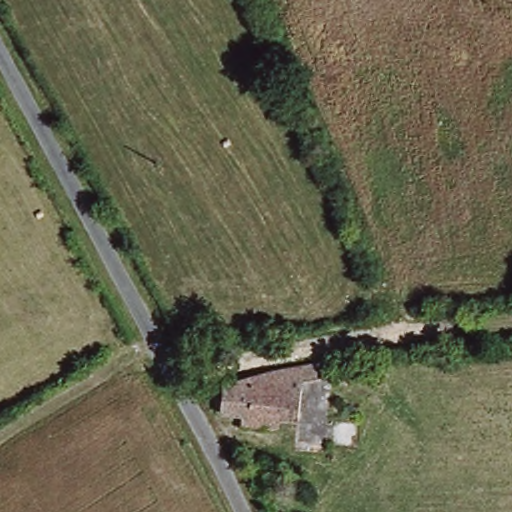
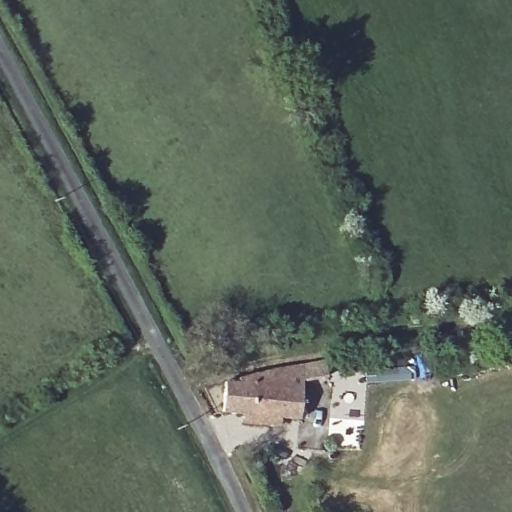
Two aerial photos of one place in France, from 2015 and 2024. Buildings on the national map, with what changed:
unchanged [(240,437),(241,428),(220,425),(222,393),(325,379),(328,395),(303,398),(297,436),(277,433),(276,442),(240,437)]

